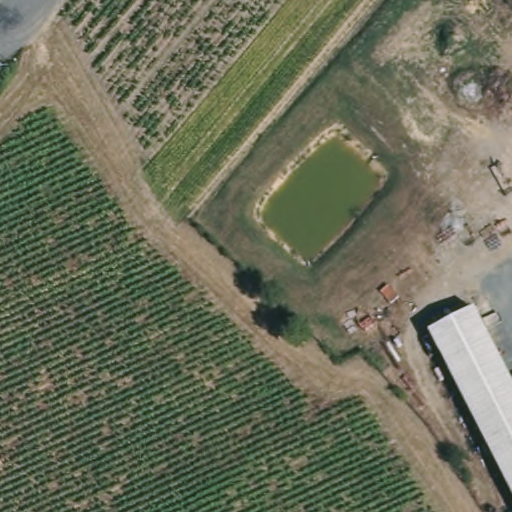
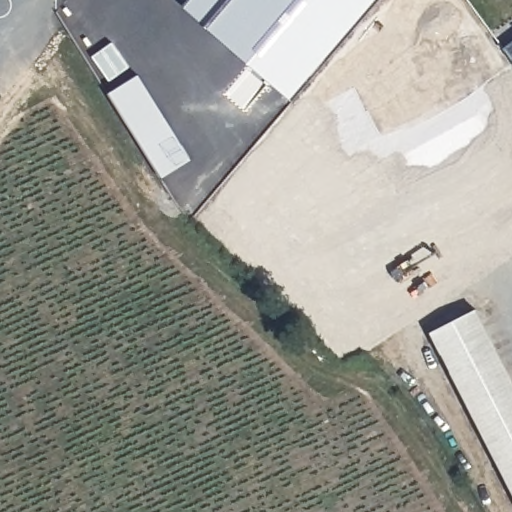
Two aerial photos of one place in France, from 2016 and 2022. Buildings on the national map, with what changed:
new [(183,6),(188,0),(378,0),(292,100),(183,6)]
new [(512,42),(512,60),(504,48),(512,42)]
unchanged [(427,333),(476,308),(512,379),(512,496),(427,333)]

